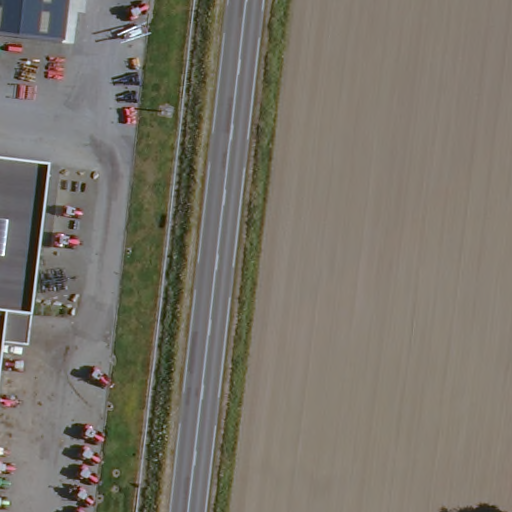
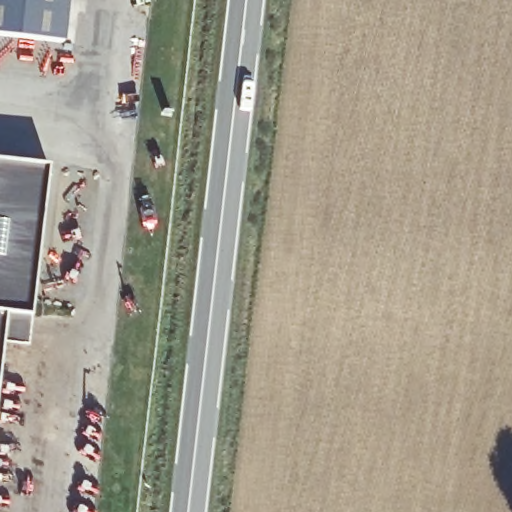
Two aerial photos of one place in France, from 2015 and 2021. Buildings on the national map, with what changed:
unchanged [(66,39),(30,35),(0,32),(0,0),(71,0),(66,39)]
unchanged [(28,343),(4,341),(0,374),(0,156),(49,162),(28,343)]

